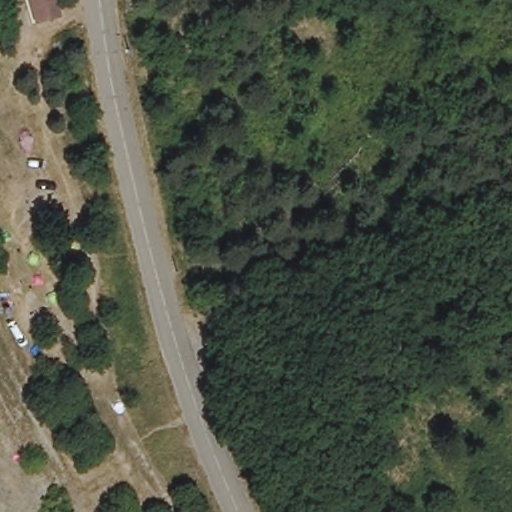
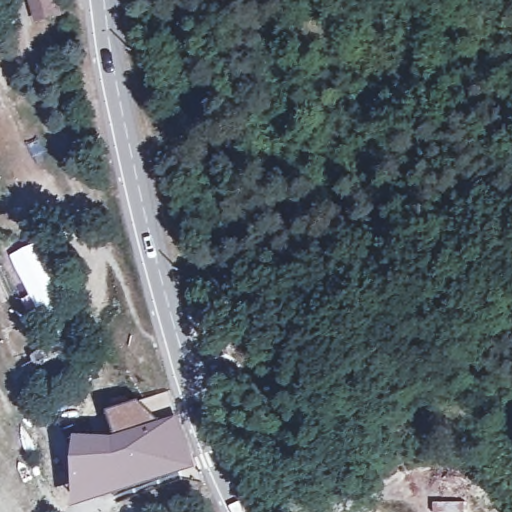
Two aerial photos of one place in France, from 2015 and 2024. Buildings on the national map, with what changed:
unchanged [(56,18),(38,23),(31,0),(55,0),(59,16),(56,18)]
new [(39,244),(67,300),(41,312),(15,260),(39,244)]
new [(195,469),(77,510),(79,438),(117,440),(110,414),(139,403),(161,423),(178,419),(195,469)]

